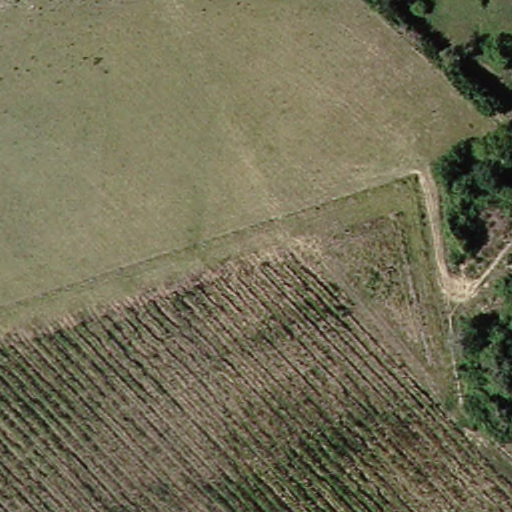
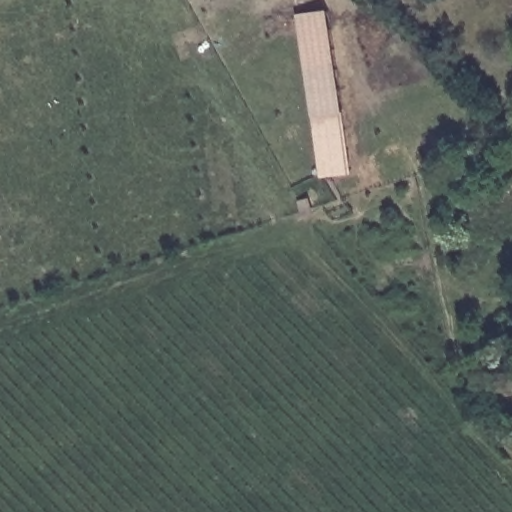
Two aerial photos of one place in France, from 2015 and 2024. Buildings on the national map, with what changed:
new [(353,172),(323,177),(297,12),(330,7),(353,172)]

